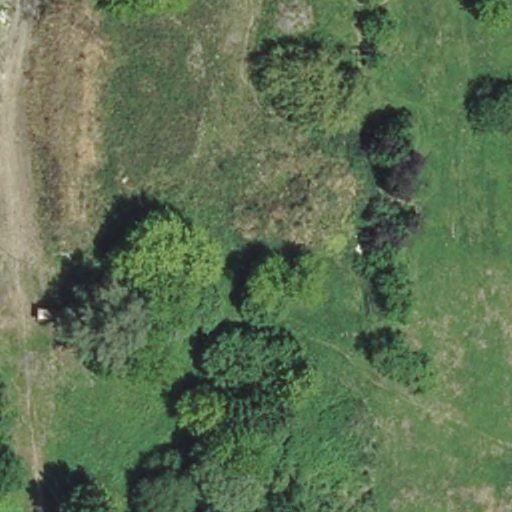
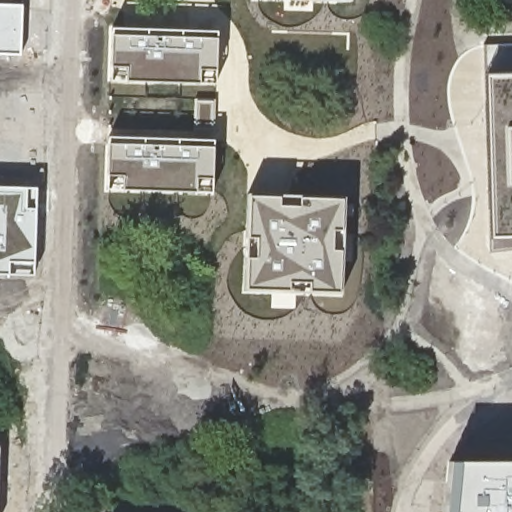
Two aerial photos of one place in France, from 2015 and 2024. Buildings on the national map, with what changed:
new [(0,0),(23,0),(23,6),(21,55),(0,54),(0,0)]
new [(351,0),(351,2),(302,0),(351,0)]
new [(108,81),(111,27),(217,32),(216,84),(108,81)]
new [(491,240),(486,77),(512,76),(512,239),(491,240)]
new [(212,195),(107,192),(109,137),(214,141),(212,195)]
new [(33,263),(9,262),(9,275),(0,275),(0,189),(27,190),(26,210),(35,210),(33,263)]
new [(345,199),(341,294),(244,291),(247,196),(345,199)]
new [(450,463),(512,462),(512,512),(444,512),(450,463)]

